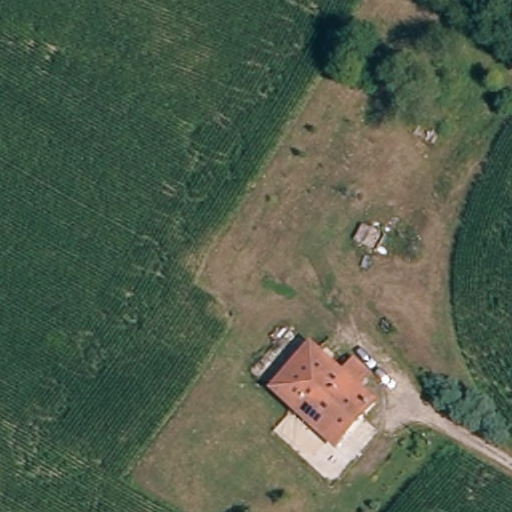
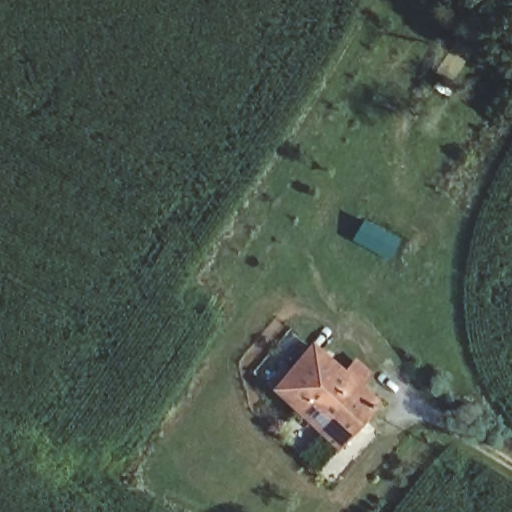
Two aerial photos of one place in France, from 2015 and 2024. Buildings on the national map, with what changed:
unchanged [(377,252),(363,245),(368,235),(371,230),(385,238),(381,244),(377,252)]
unchanged [(370,409),(330,453),(267,397),(307,352),(339,381),(350,369),(364,382),(353,394),(370,409)]

